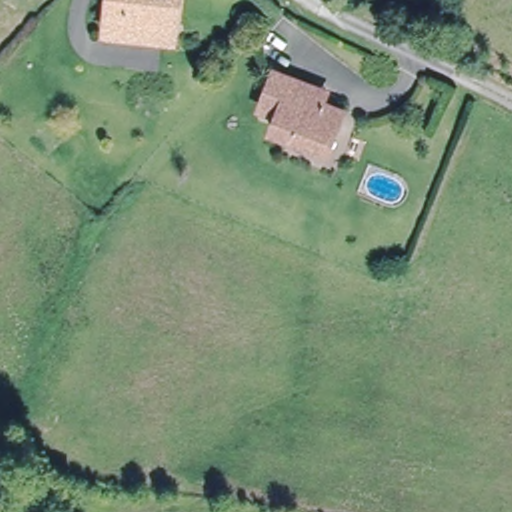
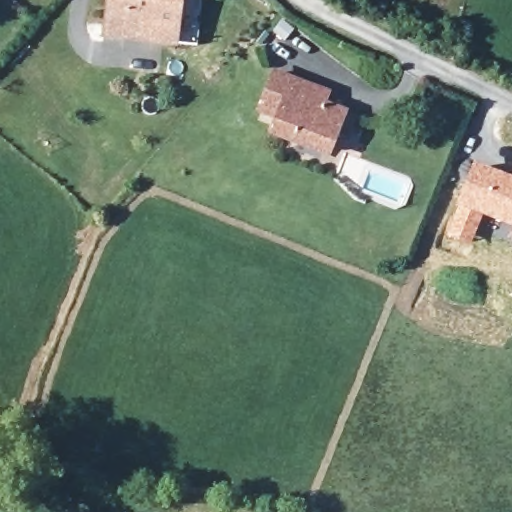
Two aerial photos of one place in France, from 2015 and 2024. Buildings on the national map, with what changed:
unchanged [(147,40),(103,36),(108,0),(173,0),(170,26),(168,43),(147,40)]
unchanged [(323,161),(272,137),(282,117),(267,110),(283,77),(314,92),(328,99),(322,111),(342,121),(323,161)]
new [(512,175),(512,227),(483,216),(470,246),(445,236),(473,161),(512,175)]

